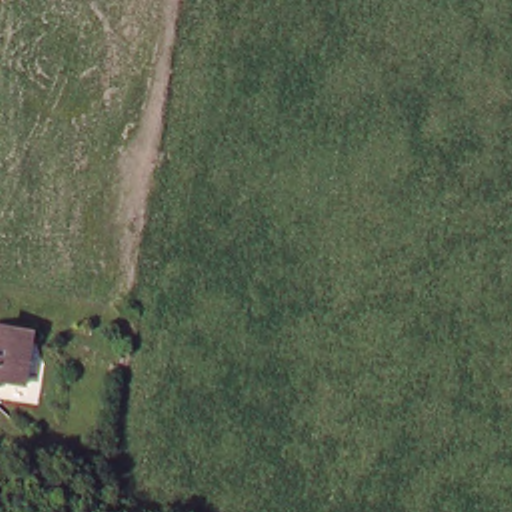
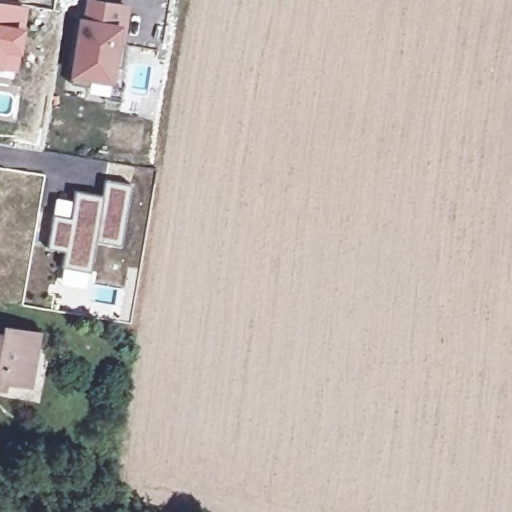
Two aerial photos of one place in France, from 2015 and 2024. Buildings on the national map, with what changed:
new [(71,77),(68,76),(76,16),(82,17),(85,0),(101,0),(129,3),(124,43),(121,67),(114,66),(111,83),(90,80),(89,86),(69,84),(71,77)]
new [(18,68),(0,66),(0,4),(27,8),(18,68)]
new [(105,196),(108,181),(134,186),(124,247),(99,242),(94,274),(65,269),(68,253),(50,249),(56,215),(73,219),(78,192),(105,196)]
unchanged [(21,326),(18,343),(28,357),(24,379),(0,375),(0,325),(0,323),(21,326)]
new [(28,357),(18,343),(21,326),(41,329),(30,388),(5,384),(4,390),(0,390),(0,375),(24,379),(28,357)]

